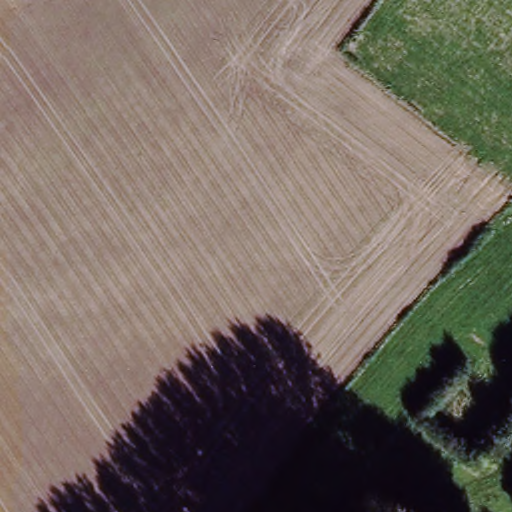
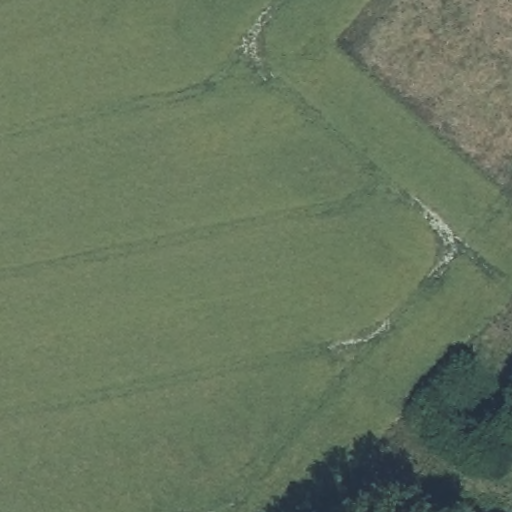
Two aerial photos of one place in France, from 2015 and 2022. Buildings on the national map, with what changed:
[]

